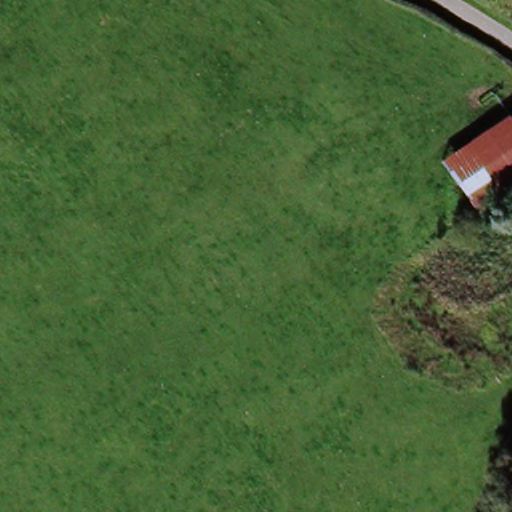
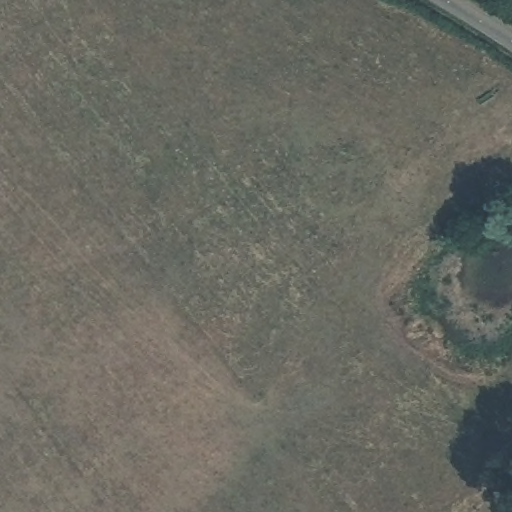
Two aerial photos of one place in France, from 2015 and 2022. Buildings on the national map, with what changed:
demolished [(508,115),(512,121),(512,175),(472,206),(441,161),(508,115)]

